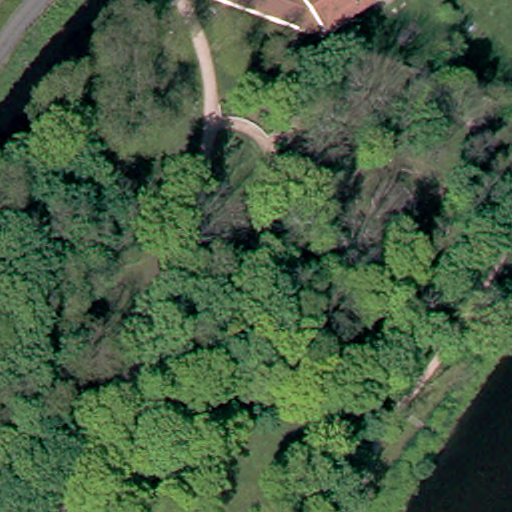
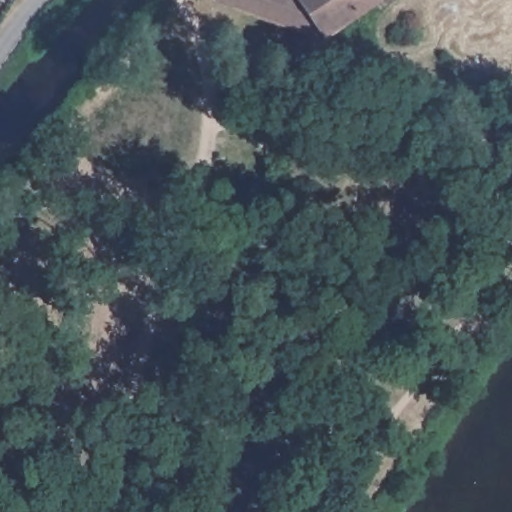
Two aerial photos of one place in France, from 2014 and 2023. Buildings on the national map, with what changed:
unchanged [(315,38),(210,0),(371,0),(315,38)]

